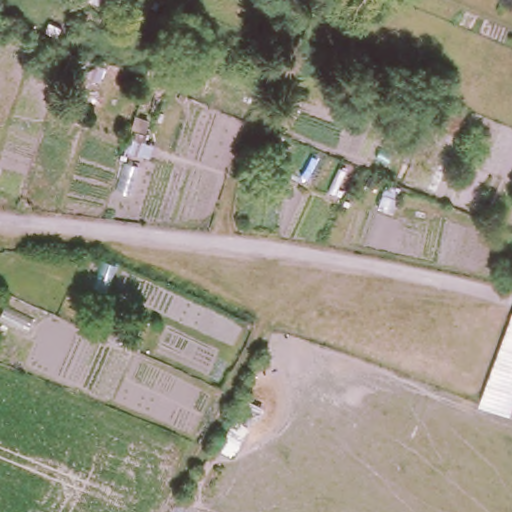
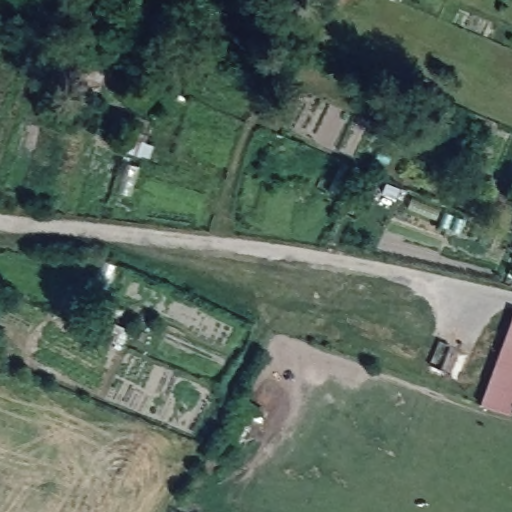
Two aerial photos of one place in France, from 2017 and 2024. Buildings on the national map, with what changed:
unchanged [(512,311),(512,344),(501,340),(512,311)]
unchanged [(501,340),(512,344),(512,409),(480,398),(501,340)]

